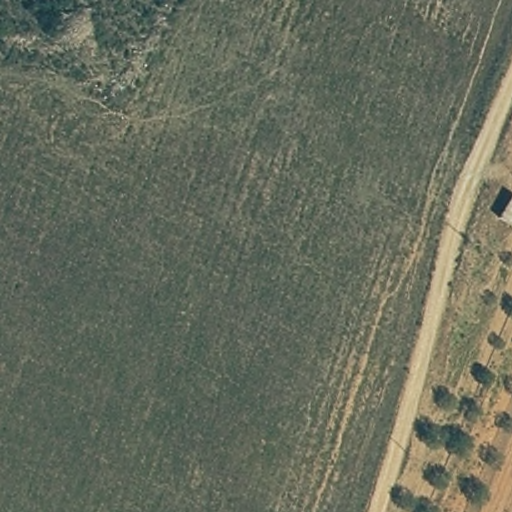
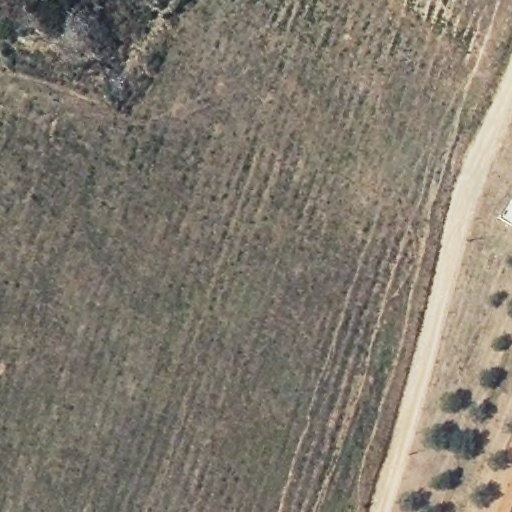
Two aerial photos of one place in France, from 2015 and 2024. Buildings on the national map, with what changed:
unchanged [(512,196),(512,226),(510,229),(497,220),(511,196),(512,196)]

